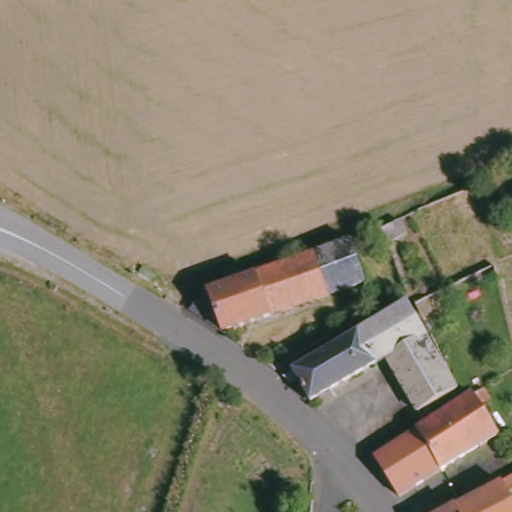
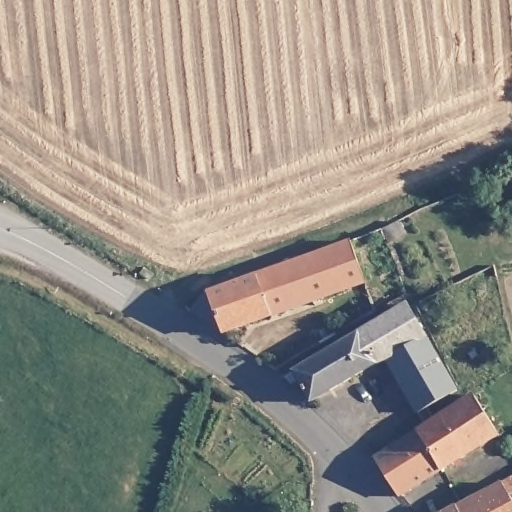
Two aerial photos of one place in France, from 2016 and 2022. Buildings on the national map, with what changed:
unchanged [(297,333),(328,316),(318,288),(222,326),(187,301),(207,281),(347,232),(373,304),(332,326),(302,342),(297,333)]
unchanged [(407,297),(455,384),(416,406),(387,352),(377,354),(308,393),(296,371),(286,375),(276,368),(407,297)]
unchanged [(415,423),(471,388),(496,426),(440,462),(415,423)]
unchanged [(440,462),(399,489),(374,450),(415,423),(440,462)]
unchanged [(498,473),(512,466),(512,479),(504,483),(512,498),(512,512),(429,512),(499,475),(498,473)]

